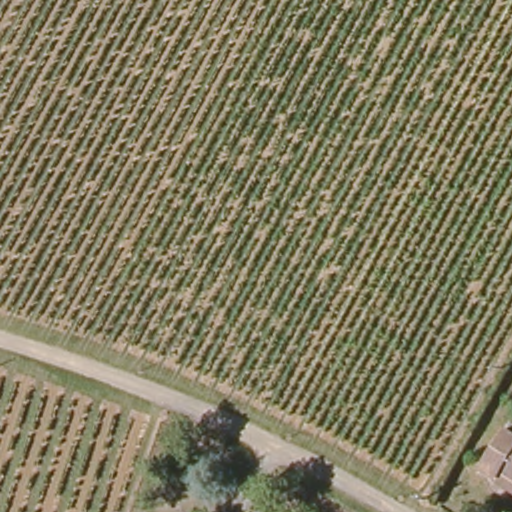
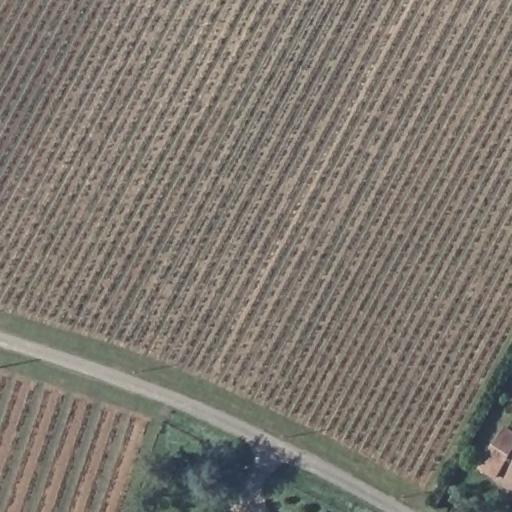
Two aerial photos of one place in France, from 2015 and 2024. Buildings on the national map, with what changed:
unchanged [(508,431),(512,433),(512,491),(483,473),(508,431)]

